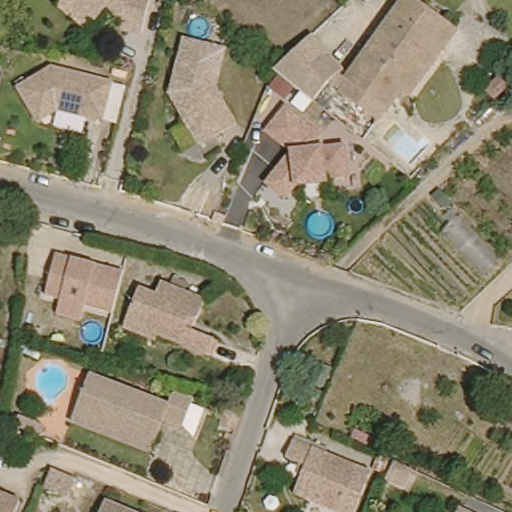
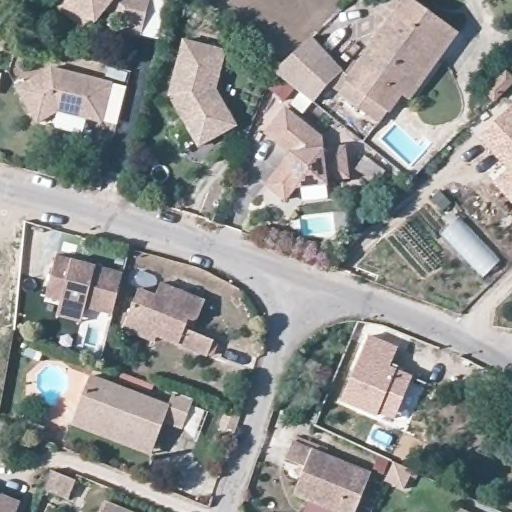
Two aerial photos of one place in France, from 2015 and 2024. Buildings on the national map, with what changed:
unchanged [(136,34),(116,32),(118,23),(102,14),(85,35),(53,7),(58,0),(144,0),(136,34)]
unchanged [(454,35),(411,96),(404,92),(377,125),(335,92),(340,82),(400,0),(404,0),(454,35)]
unchanged [(211,93),(231,124),(193,150),(164,99),(182,40),(221,50),(211,93)]
unchanged [(340,69),(308,102),(273,73),(310,40),(340,69)]
unchanged [(12,89),(53,66),(109,81),(99,124),(59,114),(33,124),(12,89)]
unchanged [(475,98),(497,79),(507,90),(484,109),(475,98)]
new [(508,172),(477,138),(510,107),(512,108),(512,203),(494,184),(508,172)]
unchanged [(283,158),(260,137),(283,111),(319,141),(315,149),(342,146),(345,179),(323,184),(294,187),(284,203),(263,185),(283,158)]
unchanged [(116,273),(107,312),(82,306),(78,320),(56,317),(58,305),(43,300),(54,259),(116,273)]
unchanged [(127,328),(133,314),(146,286),(162,293),(167,283),(211,302),(201,324),(198,332),(221,342),(212,360),(159,336),(157,342),(127,328)]
new [(342,401),(370,336),(399,347),(392,367),(398,370),(413,376),(396,420),(378,412),(377,416),(342,401)]
unchanged [(78,421),(83,409),(96,376),(171,405),(178,390),(200,398),(188,426),(170,419),(161,441),(156,452),(78,421)]
unchanged [(292,492),(304,465),(283,456),(291,438),(370,470),(355,506),(353,512),(302,512),(307,499),(292,492)]
unchanged [(398,467),(416,475),(407,493),(389,485),(398,467)]
unchanged [(69,499),(43,488),(50,471),(78,482),(69,499)]
unchanged [(24,501),(19,512),(0,512),(0,490),(24,501)]
unchanged [(135,512),(103,512),(108,501),(135,512)]

